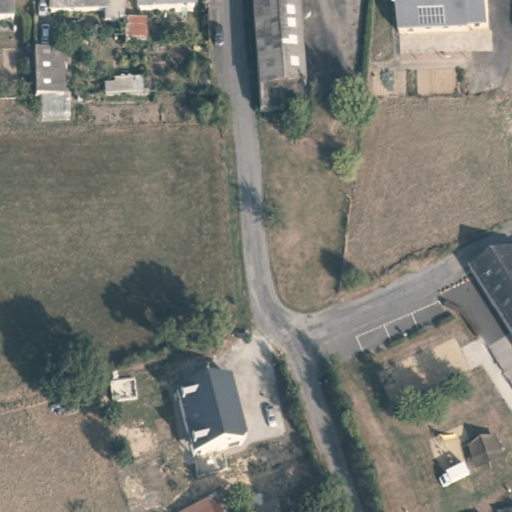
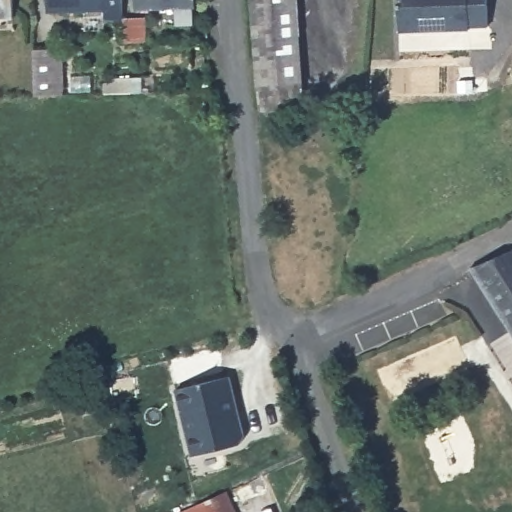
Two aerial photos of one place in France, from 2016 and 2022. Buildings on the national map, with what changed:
unchanged [(0,17),(0,0),(16,0),(16,16),(0,17)]
unchanged [(53,9),(53,0),(127,0),(127,18),(108,19),(108,8),(53,9)]
unchanged [(143,9),(142,0),(196,0),(196,6),(143,9)]
unchanged [(296,0),(304,106),(259,110),(251,0),(296,0)]
unchanged [(468,26),(468,29),(399,31),(398,0),(486,0),(486,26),(468,26)]
unchanged [(147,17),(148,42),(128,43),(127,18),(147,17)]
unchanged [(39,101),(38,54),(66,54),(68,100),(39,101)]
unchanged [(104,81),(114,81),(114,77),(124,76),(140,76),(140,93),(124,93),(105,94),(104,81)]
unchanged [(473,267),(512,250),(512,327),(483,283),(473,267)]
unchanged [(239,443),(190,454),(175,390),(230,378),(244,436),(239,443)]
unchanged [(226,492),(235,512),(182,512),(226,492)]

